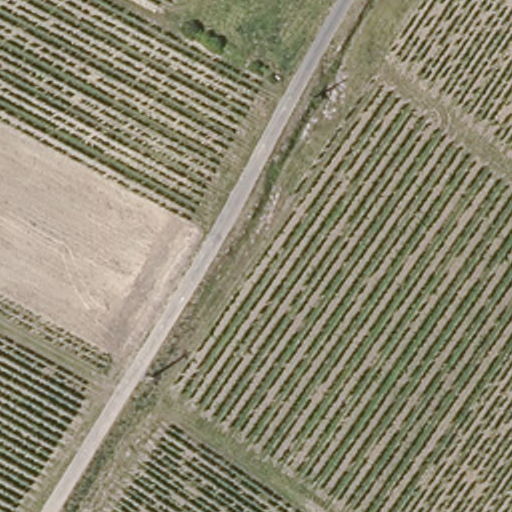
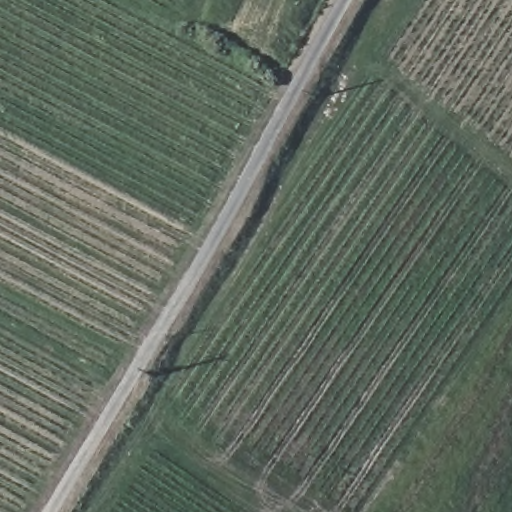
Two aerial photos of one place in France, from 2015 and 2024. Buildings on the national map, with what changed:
[]

